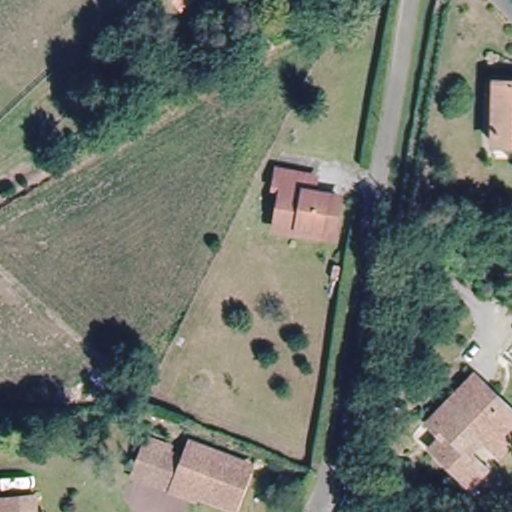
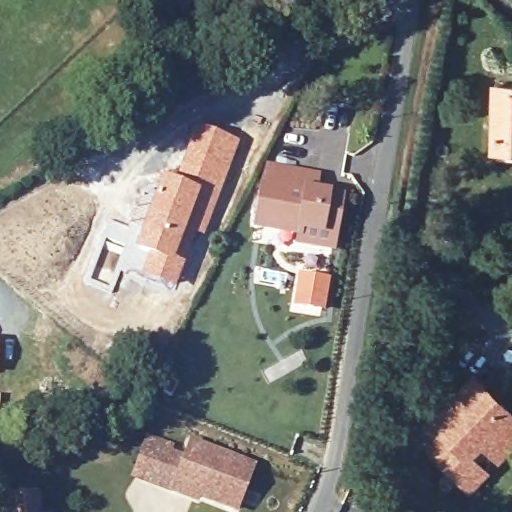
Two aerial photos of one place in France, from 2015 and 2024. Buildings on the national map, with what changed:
unchanged [(498,84),(512,84),(512,145),(497,145),(498,84)]
new [(122,256),(126,257),(160,177),(172,182),(193,126),(238,142),(202,237),(185,232),(175,259),(184,262),(173,290),(118,267),(122,256)]
unchanged [(298,236),(273,232),(280,190),(275,190),(278,173),(315,179),(311,195),(337,200),(331,235),(330,241),(298,236)]
unchanged [(494,443),(487,437),(471,453),(488,470),(475,483),(437,446),(448,434),(433,420),(479,374),(492,387),(512,405),(512,446),(505,453),(494,443)]
unchanged [(403,419),(397,440),(381,435),(387,415),(403,419)]
unchanged [(144,437),(182,447),(168,484),(132,476),(144,437)]
unchanged [(194,487),(192,492),(168,484),(182,447),(186,437),(248,459),(233,500),(194,487)]
unchanged [(40,512),(2,512),(0,493),(0,492),(38,490),(40,512)]

